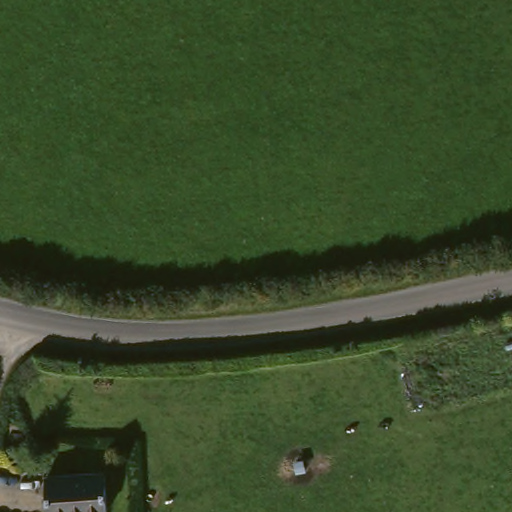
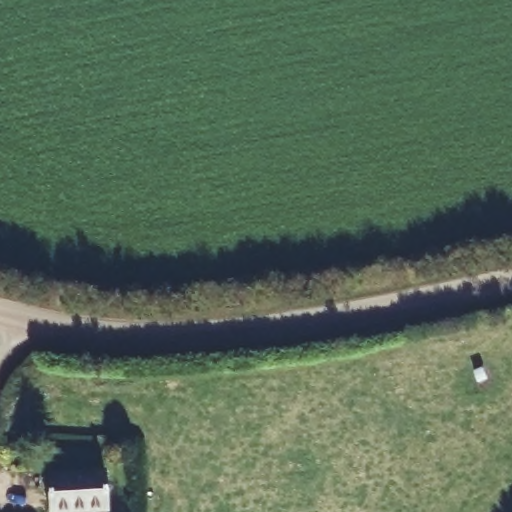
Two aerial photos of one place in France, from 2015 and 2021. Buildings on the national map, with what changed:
unchanged [(105,470),(110,509),(89,512),(54,512),(50,475),(105,470)]

